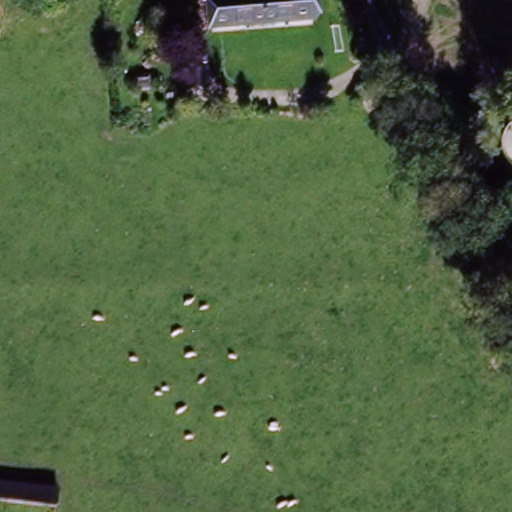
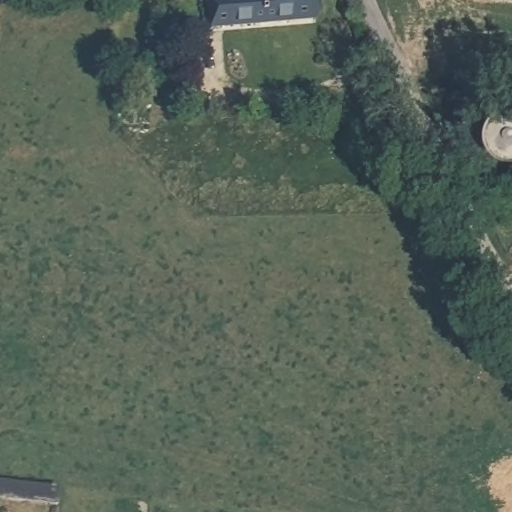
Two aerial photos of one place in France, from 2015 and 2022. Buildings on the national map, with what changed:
unchanged [(216,26),(215,0),(290,0),(291,25),(216,26)]
unchanged [(0,503),(0,483),(61,491),(60,510),(0,503)]

